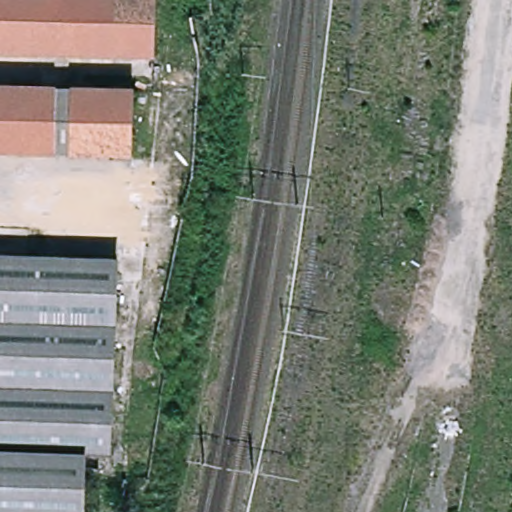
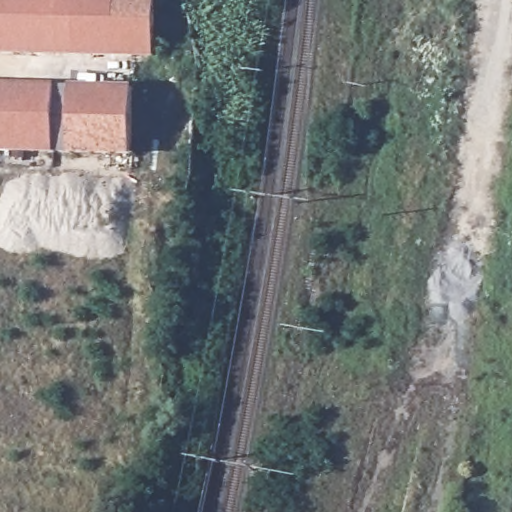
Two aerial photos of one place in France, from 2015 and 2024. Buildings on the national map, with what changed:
unchanged [(138,58),(0,54),(0,0),(159,0),(157,59),(138,58)]
unchanged [(0,150),(0,84),(65,86),(64,151),(0,150)]
unchanged [(65,86),(81,86),(80,152),(64,151),(65,86)]
unchanged [(142,88),(142,91),(140,153),(130,153),(80,152),(81,86),(142,88)]
demolished [(127,258),(119,452),(83,451),(0,448),(0,254),(127,258)]
demolished [(83,451),(82,476),(81,510),(81,512),(0,512),(0,448),(83,451)]

